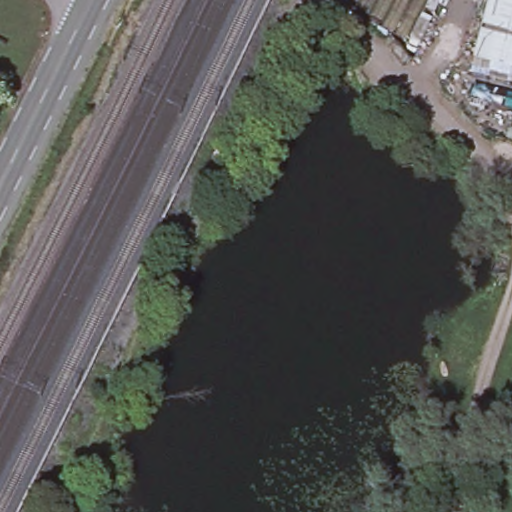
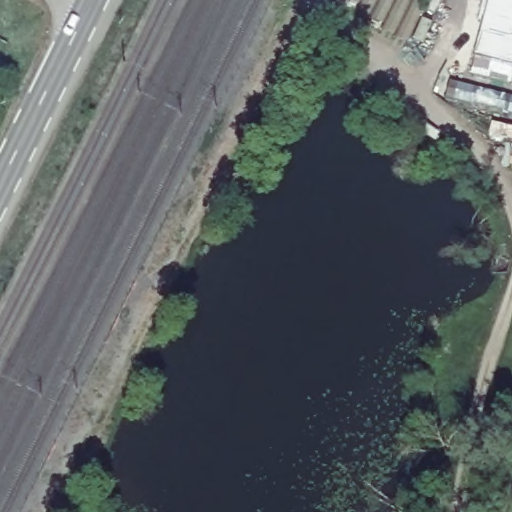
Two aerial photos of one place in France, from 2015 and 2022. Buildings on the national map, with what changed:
unchanged [(488,60),(475,55),(490,0),(512,0),(512,80),(485,71),(488,60)]

